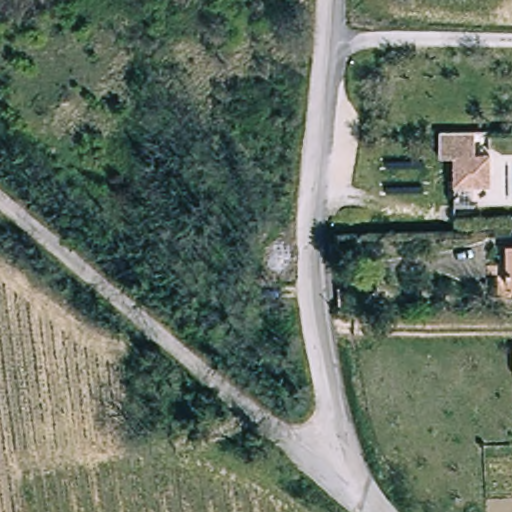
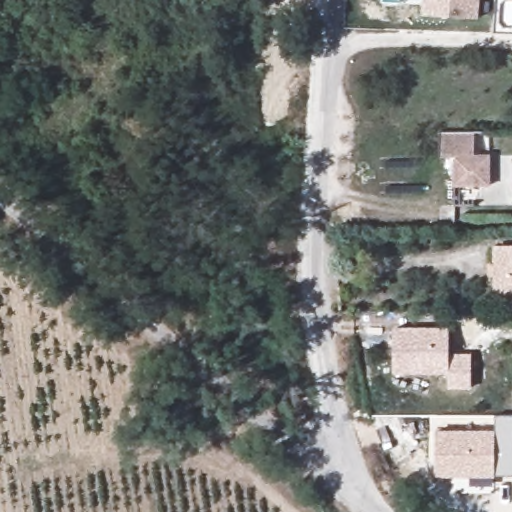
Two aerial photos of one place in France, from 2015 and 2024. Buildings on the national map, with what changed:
new [(421,0),(476,0),(475,15),(420,12),(421,0)]
unchanged [(494,182),(476,182),(455,182),(458,155),(440,153),(442,130),(476,129),(477,154),(493,152),(494,182)]
unchanged [(508,283),(509,242),(512,242),(512,283),(508,283)]
new [(450,353),(472,353),(472,389),(448,389),(448,373),(393,373),(392,327),(449,328),(450,353)]
new [(496,416),(512,416),(512,476),(496,475),(496,478),(494,478),(494,486),(470,486),(470,477),(436,477),(436,430),(496,431),(496,416)]

